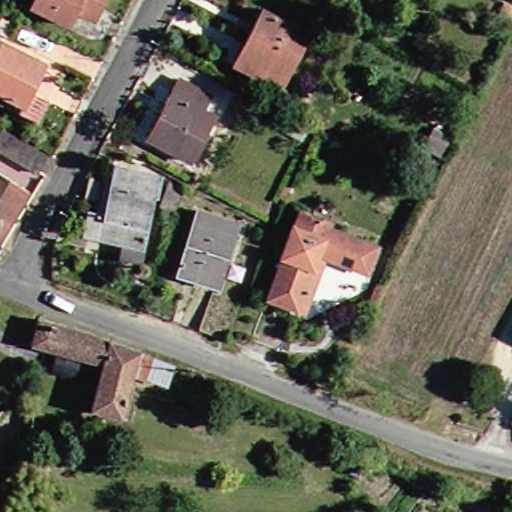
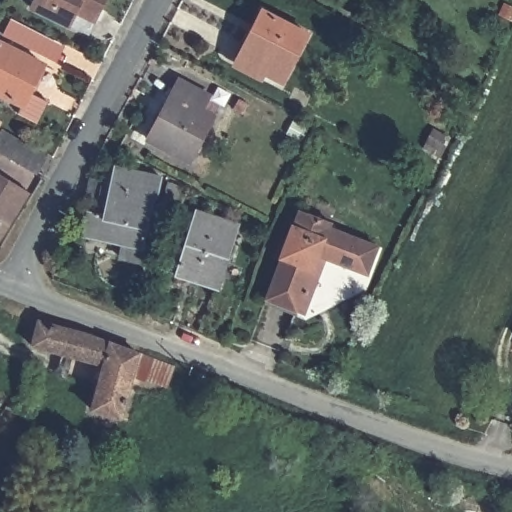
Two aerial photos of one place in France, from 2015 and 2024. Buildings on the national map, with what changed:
unchanged [(78,5),(69,23),(36,4),(38,0),(103,0),(95,14),(78,5)]
unchanged [(283,84),(241,60),(265,9),(309,34),(283,84)]
unchanged [(48,60),(35,84),(52,94),(41,116),(0,93),(0,41),(3,35),(48,60)]
unchanged [(194,160),(152,137),(180,79),(211,94),(203,111),(214,118),(194,160)]
unchanged [(251,119),(240,112),(245,101),(256,108),(251,119)]
unchanged [(54,157),(44,176),(0,150),(11,130),(54,157)]
unchanged [(143,263),(125,258),(128,244),(73,229),(78,202),(90,203),(91,192),(87,190),(95,160),(155,175),(152,192),(162,194),(143,263)]
unchanged [(0,237),(0,171),(28,188),(0,237)]
unchanged [(178,211),(165,208),(174,179),(188,182),(178,211)]
unchanged [(382,243),(371,272),(334,256),(324,253),(304,305),(274,292),(289,255),(285,254),(300,215),(304,217),(308,205),(338,218),(335,224),(382,243)]
unchanged [(229,286),(183,273),(199,206),(244,218),(229,286)]
unchanged [(308,319),(269,303),(274,292),(304,305),(324,253),(334,256),(308,319)]
unchanged [(107,362),(99,359),(35,341),(44,315),(113,339),(107,362)]
unchanged [(134,373),(123,413),(96,406),(107,362),(113,339),(154,353),(172,359),(169,376),(150,371),(149,376),(134,373)]

